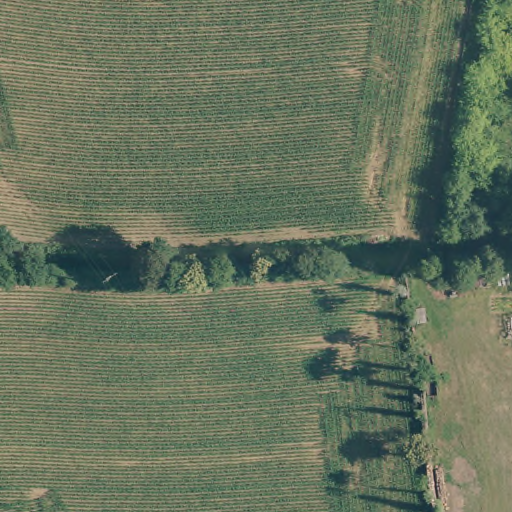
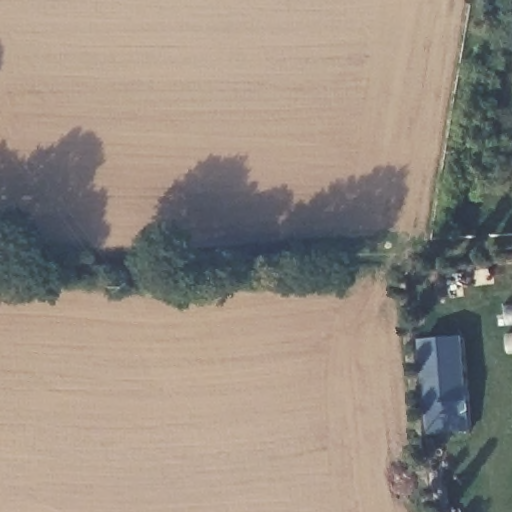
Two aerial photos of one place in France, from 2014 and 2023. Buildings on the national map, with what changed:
new [(468,400),(472,431),(431,435),(425,405),(421,340),(463,337),(468,400)]

